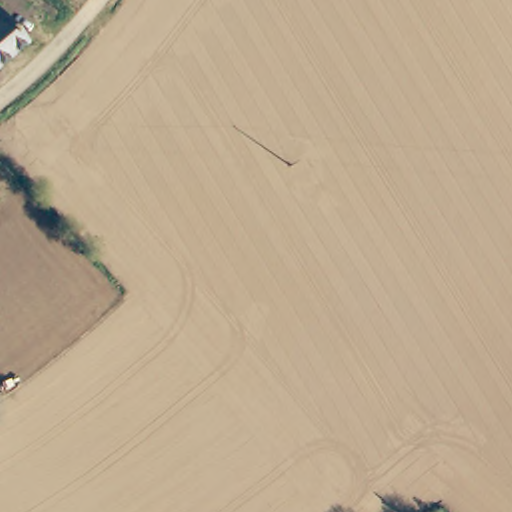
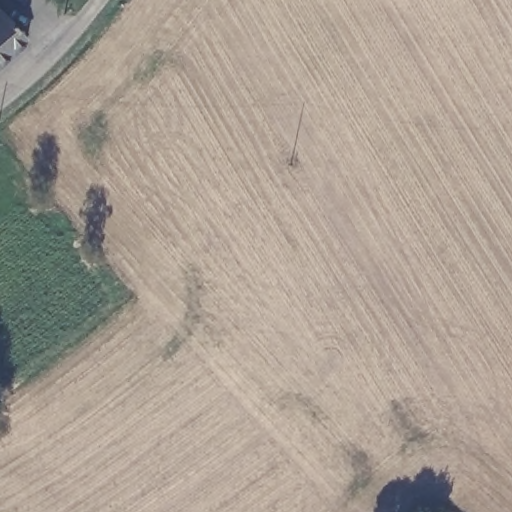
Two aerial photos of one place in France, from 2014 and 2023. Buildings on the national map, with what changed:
unchanged [(0,74),(0,20),(26,49),(0,74)]

